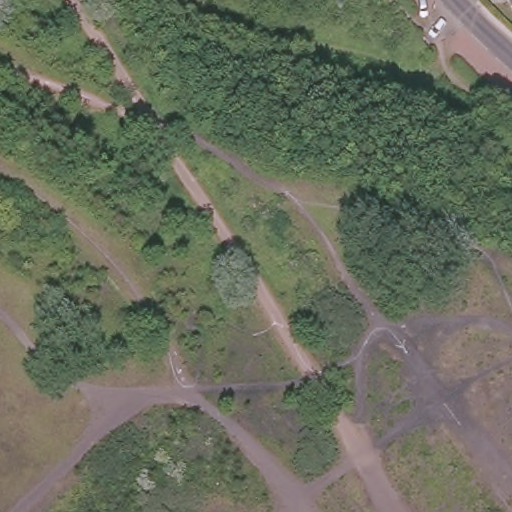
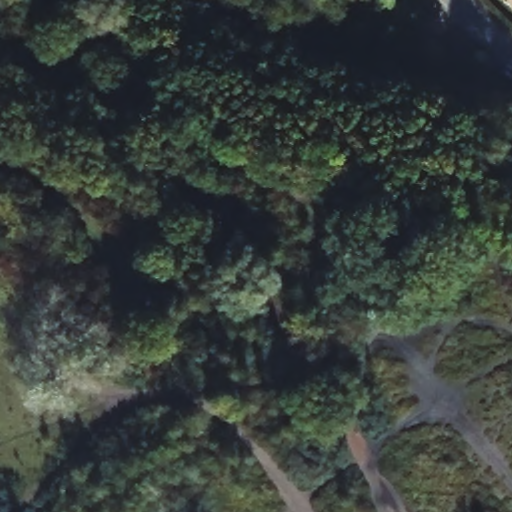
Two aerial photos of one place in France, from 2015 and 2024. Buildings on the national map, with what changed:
unchanged [(512,0),(512,1),(511,0),(512,0)]

